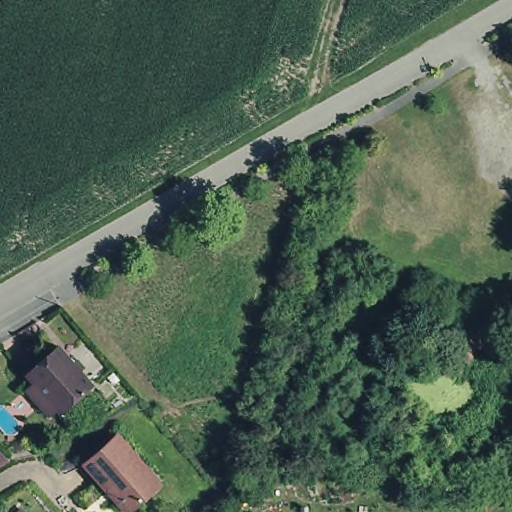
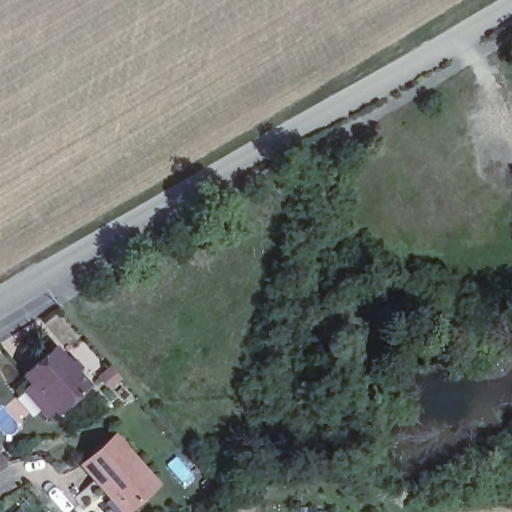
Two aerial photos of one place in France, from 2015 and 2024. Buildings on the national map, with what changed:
unchanged [(30,386),(37,379),(30,371),(62,344),(97,382),(65,410),(60,405),(52,411),(30,386)]
unchanged [(110,485),(88,460),(120,431),(163,479),(134,505),(130,508),(110,485)]
unchanged [(0,466),(0,453),(7,461),(0,466)]

